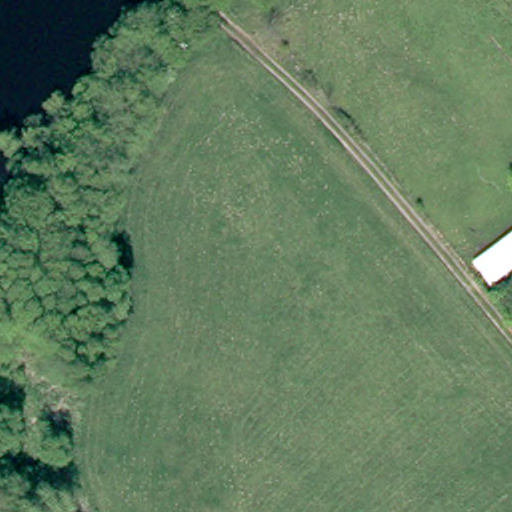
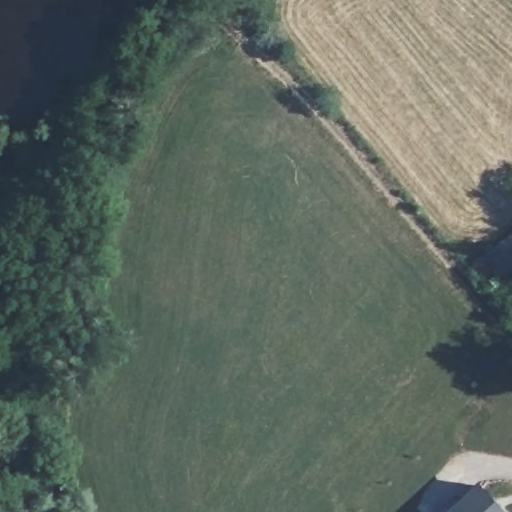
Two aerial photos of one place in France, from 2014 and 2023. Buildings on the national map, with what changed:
unchanged [(478,270),(467,253),(463,247),(512,212),(512,246),(478,270)]
new [(502,512),(448,512),(476,485),(502,512)]

